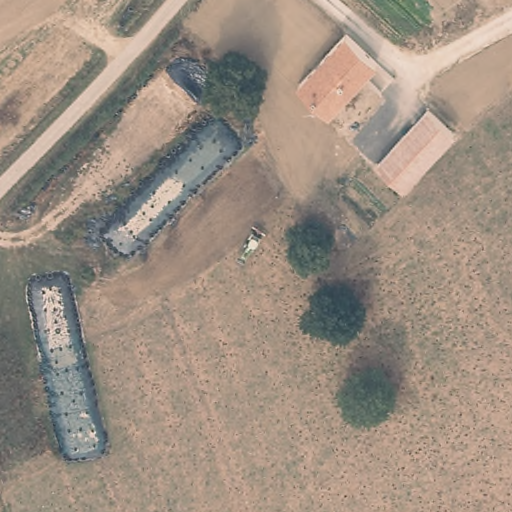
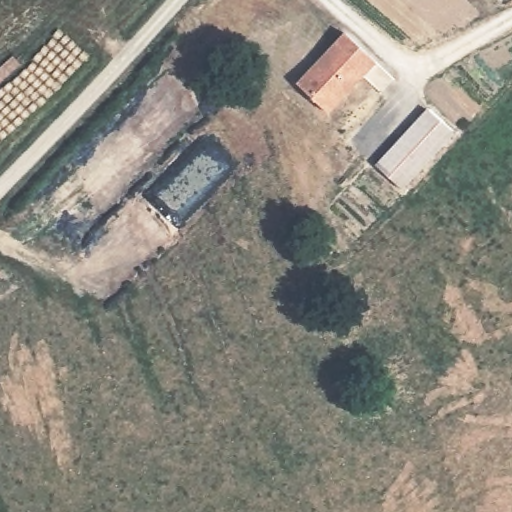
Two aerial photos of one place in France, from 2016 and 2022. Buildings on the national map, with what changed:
unchanged [(348,37),(378,65),(330,116),(300,88),(348,37)]
unchanged [(458,136),(403,194),(376,167),(428,110),(458,136)]

